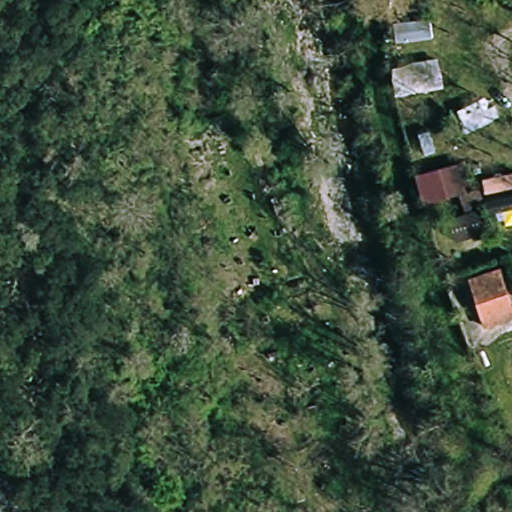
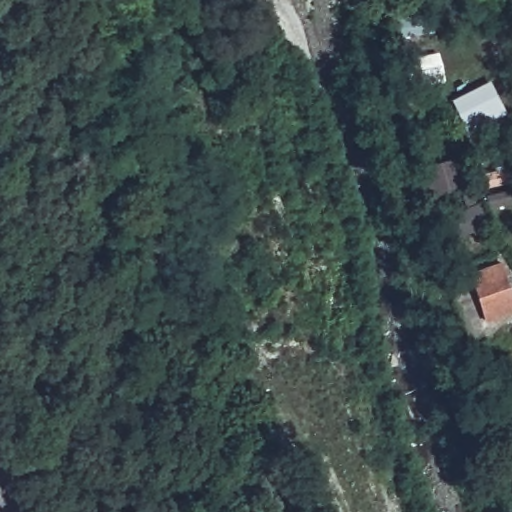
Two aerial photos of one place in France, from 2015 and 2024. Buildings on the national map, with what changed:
unchanged [(401,90),(400,60),(447,54),(450,84),(401,90)]
new [(508,113),(468,135),(451,101),(491,80),(508,113)]
unchanged [(479,185),(489,184),(494,200),(487,203),(495,227),(462,240),(452,213),(470,206),(468,192),(433,200),(425,170),(469,156),(479,185)]
unchanged [(512,280),(512,315),(487,322),(471,271),(507,261),(512,280)]

